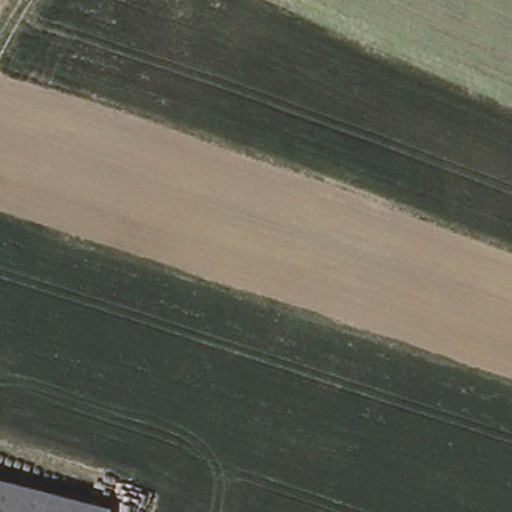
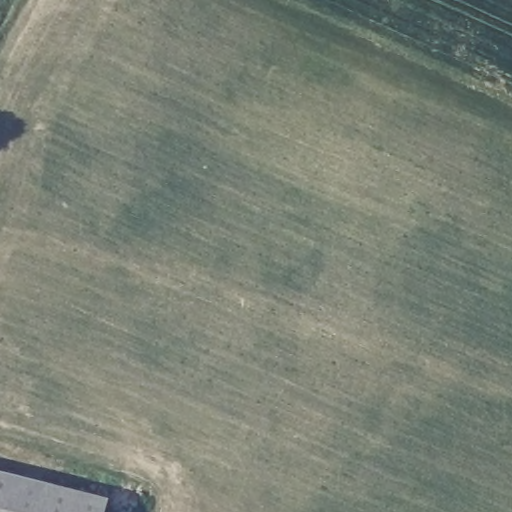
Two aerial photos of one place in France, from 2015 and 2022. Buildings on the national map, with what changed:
unchanged [(108,503),(106,512),(0,512),(0,474),(108,503)]

